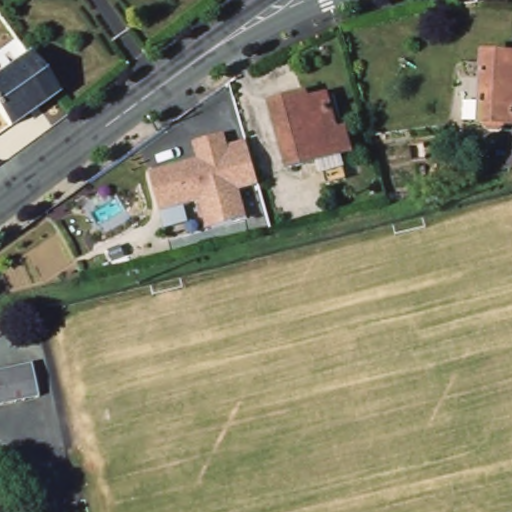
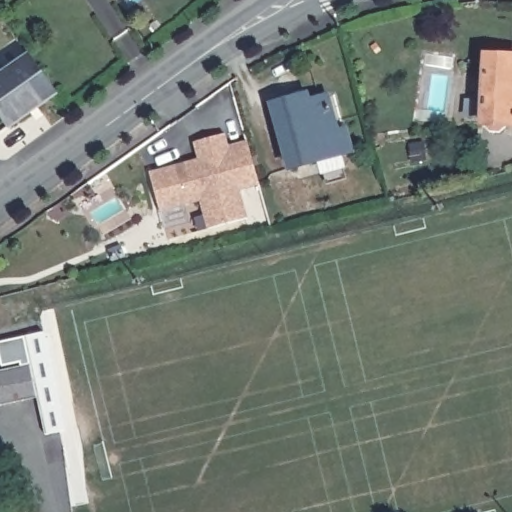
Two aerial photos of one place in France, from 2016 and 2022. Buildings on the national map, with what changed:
unchanged [(512,126),(480,122),(489,51),(512,54),(512,126)]
unchanged [(31,60),(58,96),(13,128),(0,111),(0,82),(31,60)]
unchanged [(300,92),(303,102),(332,93),(348,151),(289,168),(270,100),(300,92)]
unchanged [(150,171),(195,159),(191,141),(224,132),(228,146),(247,141),(259,186),(240,192),(246,219),(207,228),(200,200),(160,212),(150,171)]
unchanged [(41,392),(0,403),(0,368),(32,359),(41,392)]

